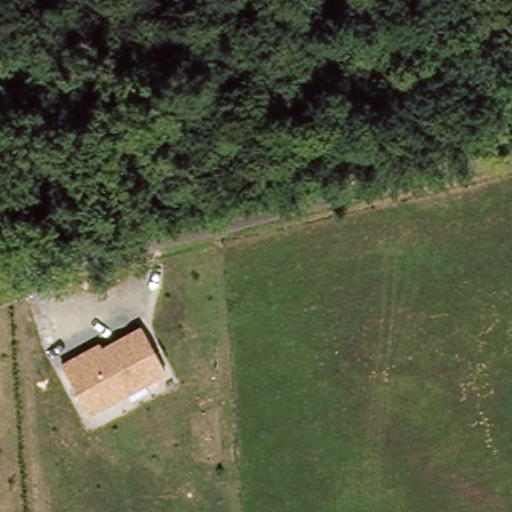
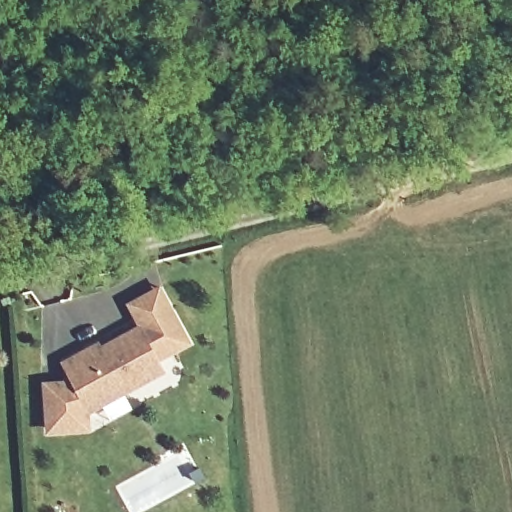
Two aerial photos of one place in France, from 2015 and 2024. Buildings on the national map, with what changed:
new [(161,360),(144,327),(139,330),(126,304),(162,285),(192,343),(161,360)]
unchanged [(61,363),(101,340),(104,348),(144,327),(168,375),(90,417),(61,363)]
new [(80,398),(90,417),(92,425),(92,432),(47,435),(42,382),(71,382),(80,398)]

